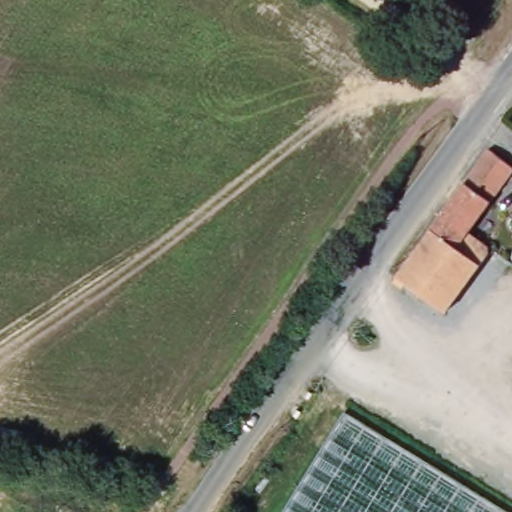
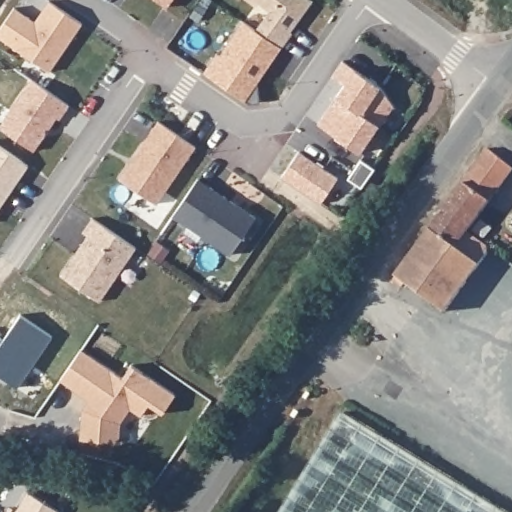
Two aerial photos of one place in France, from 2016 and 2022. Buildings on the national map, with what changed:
new [(0,29),(14,7),(35,21),(49,0),(83,23),(51,71),(0,38),(0,29)]
new [(166,8),(154,0),(172,0),(166,8)]
new [(313,1),(290,32),(292,33),(281,48),(256,30),(270,11),(258,3),(255,6),(247,0),(312,0),(313,1)]
new [(355,69),(381,87),(393,106),(379,127),(360,153),(336,135),(317,123),(343,84),(332,77),(342,61),(355,69)]
new [(68,107),(59,120),(56,118),(33,152),(0,129),(0,125),(30,81),(68,107)]
new [(158,122),(195,147),(155,205),(118,180),(158,122)]
new [(0,207),(0,148),(27,167),(0,207)]
unchanged [(488,247),(488,253),(445,312),(405,283),(401,288),(393,281),(489,148),(512,164),(512,171),(474,223),(468,232),(488,247)]
new [(337,177),(321,204),(281,179),(299,152),(337,177)]
new [(198,180),(255,219),(230,256),(172,217),(198,180)]
new [(87,237),(82,233),(91,219),(135,249),(98,303),(60,277),(87,237)]
new [(81,349),(123,378),(132,365),(176,395),(163,413),(150,404),(142,415),(131,408),(121,422),(120,442),(81,439),(83,409),(90,399),(61,380),(81,349)]
unchanged [(282,512),(343,412),(506,512),(282,512)]
new [(60,512),(16,512),(28,493),(60,512)]

